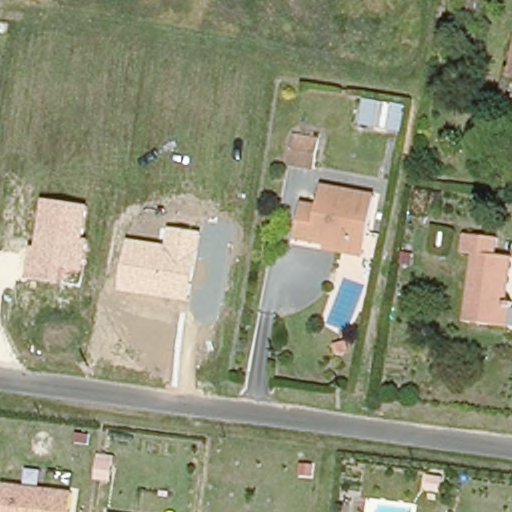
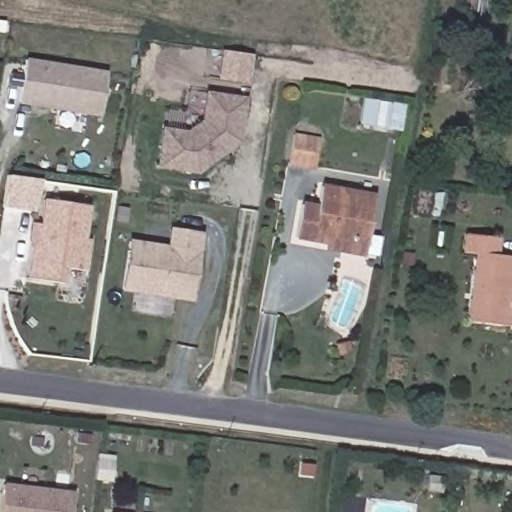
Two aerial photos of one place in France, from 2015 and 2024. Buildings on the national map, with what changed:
new [(100,116),(19,104),(26,59),(107,71),(100,116)]
new [(201,120),(205,91),(246,96),(240,142),(197,175),(155,168),(161,127),(186,130),(201,120)]
unchanged [(358,124),(362,97),(405,104),(400,131),(358,124)]
unchanged [(290,160),(295,131),(321,135),(316,163),(316,165),(290,160)]
unchanged [(328,247),(330,242),(297,236),(303,203),(320,205),(323,184),(376,194),(368,234),(365,254),(328,247)]
unchanged [(410,189),(425,194),(418,218),(403,213),(410,189)]
unchanged [(42,199),(89,206),(85,238),(89,239),(85,271),(65,268),(64,283),(27,279),(31,246),(36,247),(42,199)]
unchanged [(170,228),(202,232),(191,301),(120,292),(129,240),(166,245),(170,228)]
unchanged [(464,249),(452,247),(455,230),(488,235),(485,252),(502,254),(495,299),(500,300),(496,324),(454,316),(464,249)]
demolished [(110,359),(91,356),(94,339),(113,340),(110,359)]
unchanged [(2,512),(5,484),(72,493),(70,512),(2,512)]

